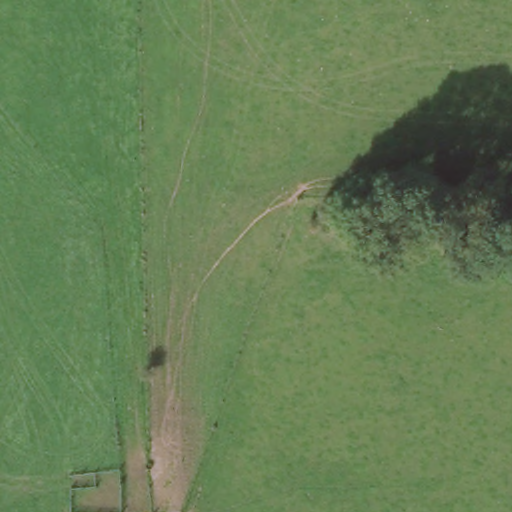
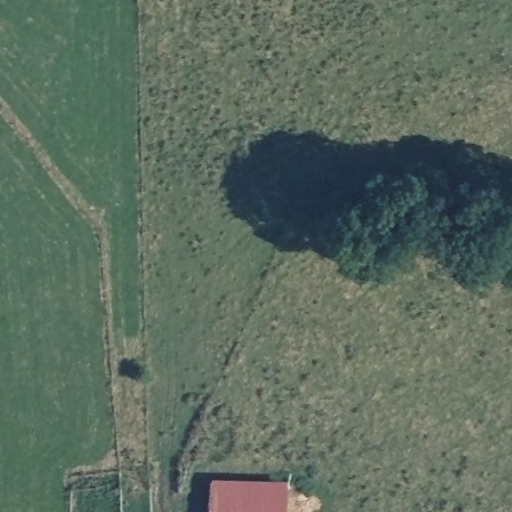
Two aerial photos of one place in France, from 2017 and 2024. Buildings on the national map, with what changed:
unchanged [(460,230),(460,255),(418,257),(417,232),(460,230)]
new [(293,483),(291,512),(212,512),(216,475),(293,483)]

